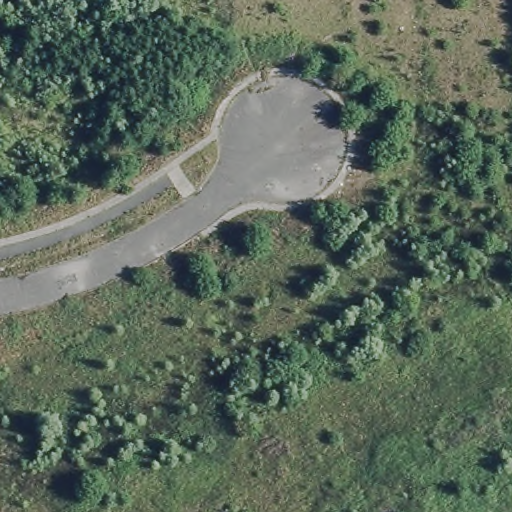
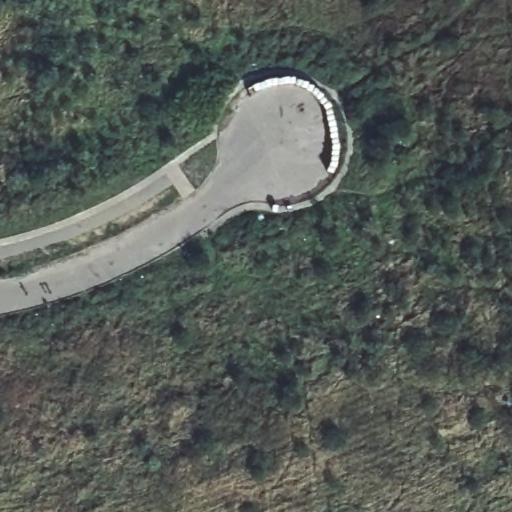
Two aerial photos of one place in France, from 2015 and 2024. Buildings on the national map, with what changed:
[]

